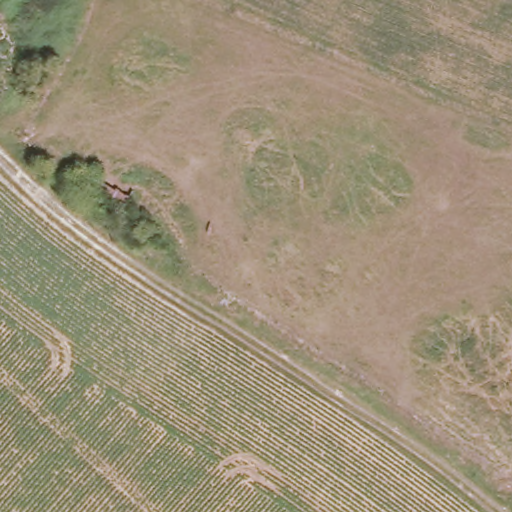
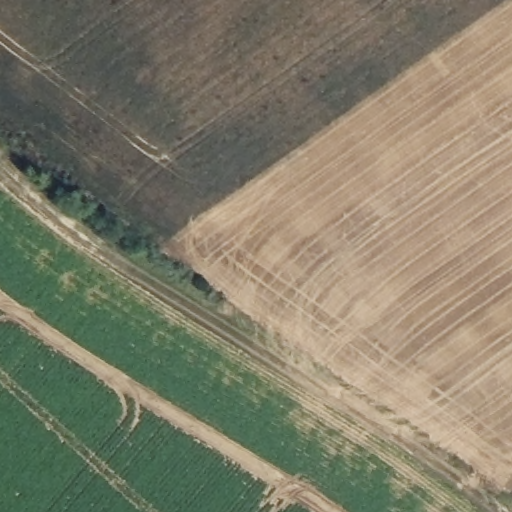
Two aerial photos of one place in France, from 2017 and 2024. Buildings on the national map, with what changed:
unchanged [(133,192),(119,214),(77,190),(88,170),(133,192)]

